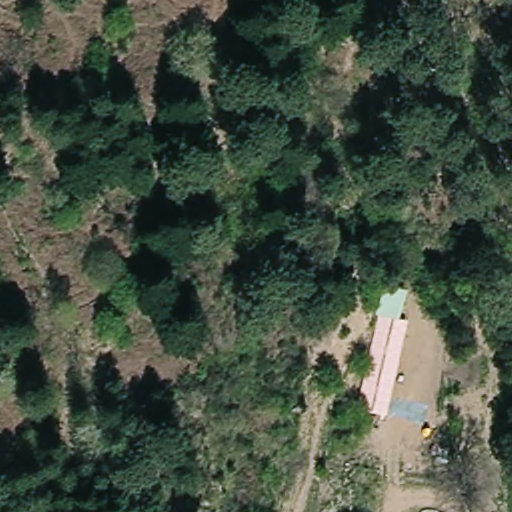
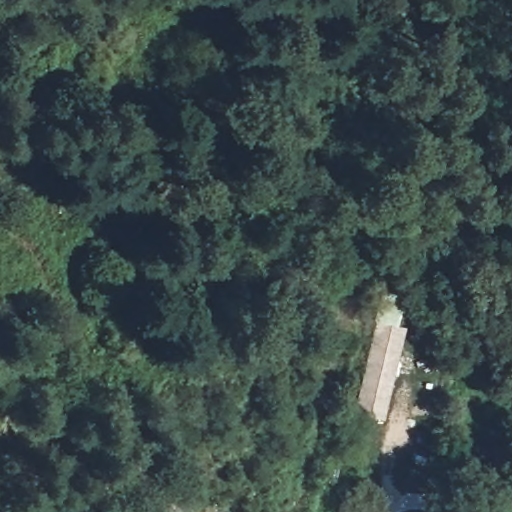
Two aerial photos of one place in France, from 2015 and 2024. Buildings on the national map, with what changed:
unchanged [(404,295),(396,323),(406,326),(384,420),(356,410),(377,320),(373,318),(381,290),(404,295)]

